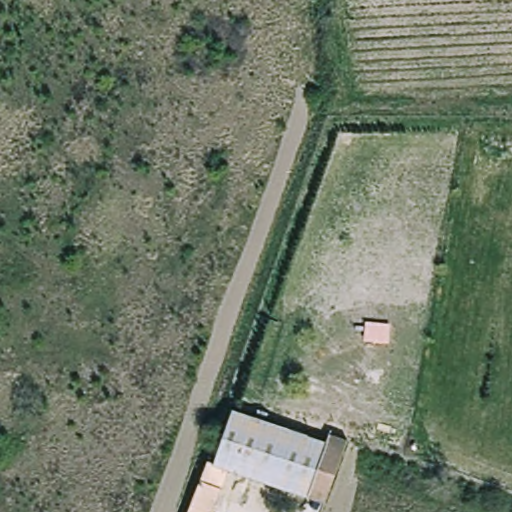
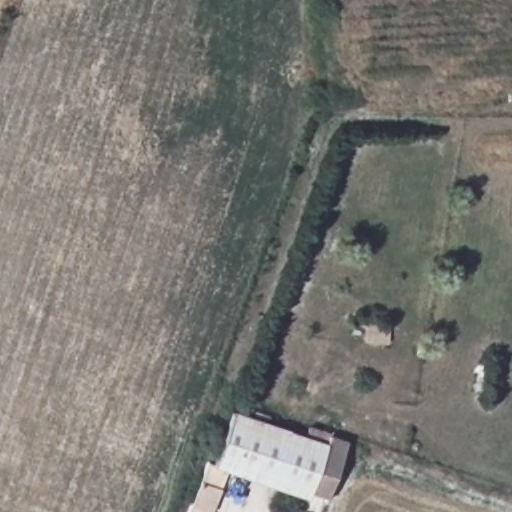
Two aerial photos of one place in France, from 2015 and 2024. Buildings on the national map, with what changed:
unchanged [(228,471),(212,512),(181,512),(202,458),(216,463),(235,415),(329,452),(310,502),(228,471)]
unchanged [(329,452),(335,436),(360,444),(335,511),(310,502),(329,452)]

